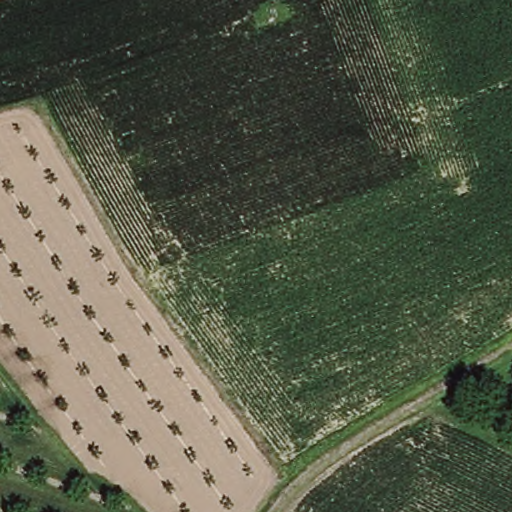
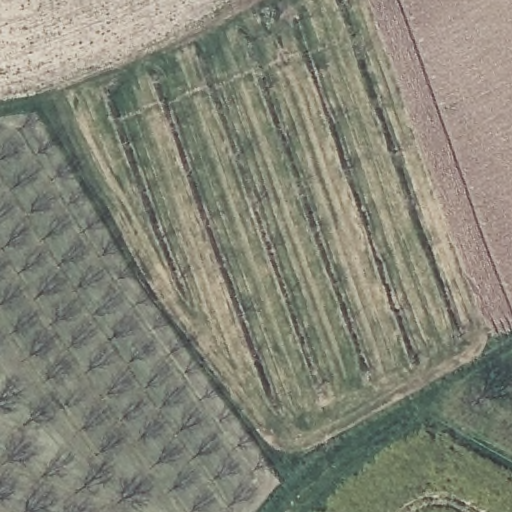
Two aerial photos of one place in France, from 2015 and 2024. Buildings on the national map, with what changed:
[]

